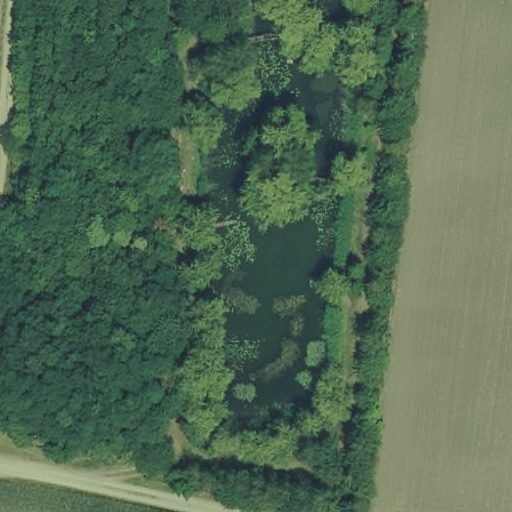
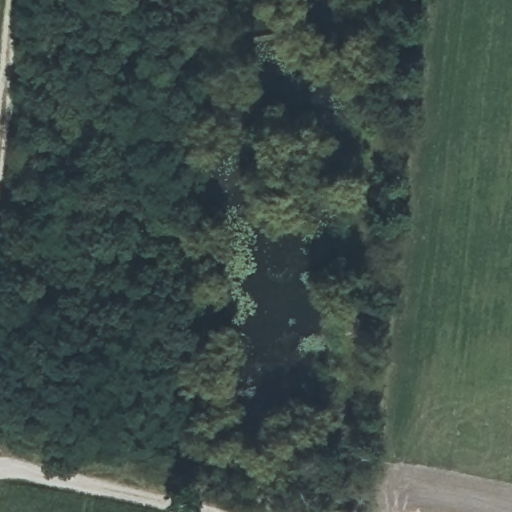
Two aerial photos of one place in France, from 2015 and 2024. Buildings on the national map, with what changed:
unchanged [(157,27),(159,0),(187,0),(186,30),(157,27)]

